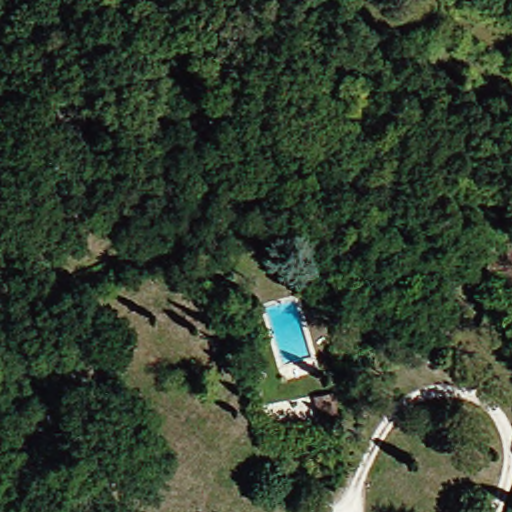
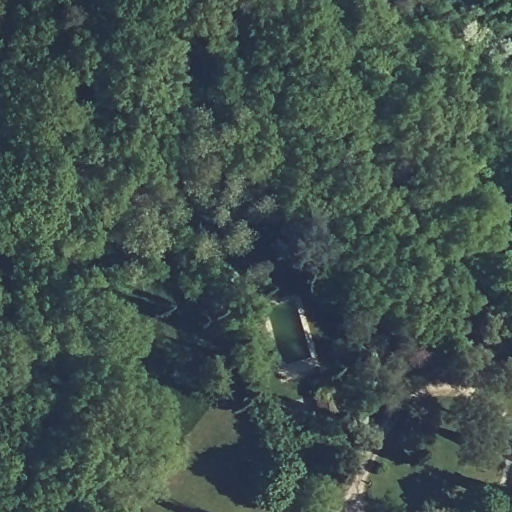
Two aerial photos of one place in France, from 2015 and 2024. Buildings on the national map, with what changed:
unchanged [(340,390),(343,414),(326,416),(322,393),(340,390)]

